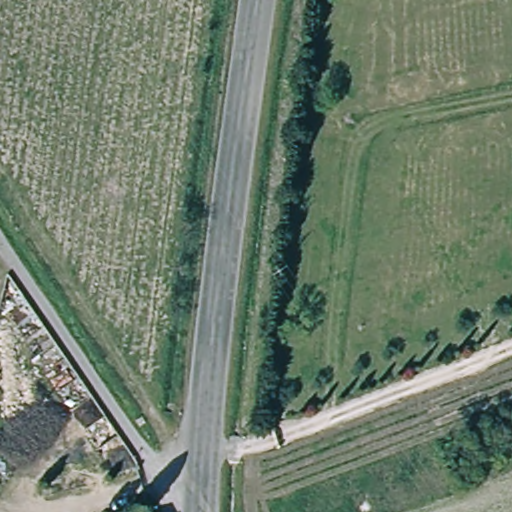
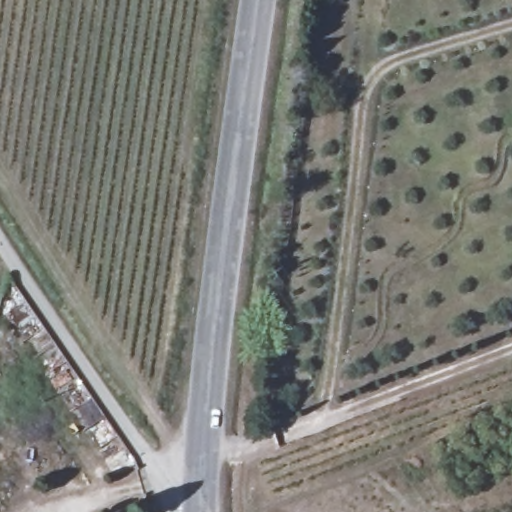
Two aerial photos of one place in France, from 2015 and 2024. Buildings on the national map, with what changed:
[]

